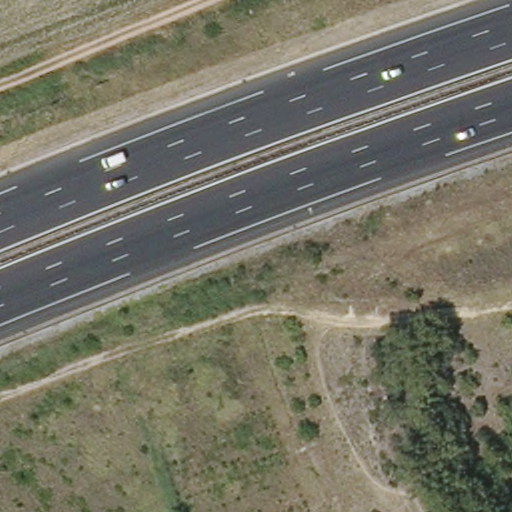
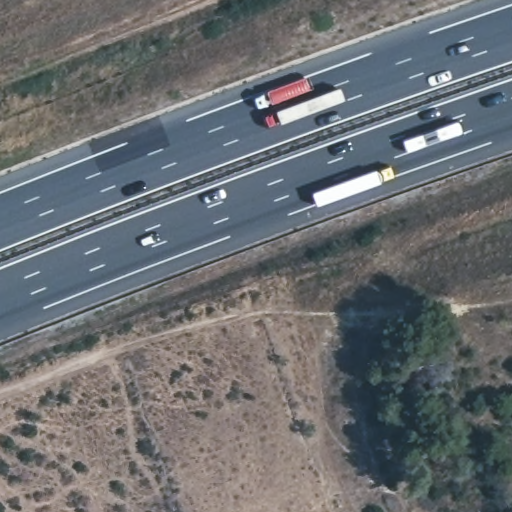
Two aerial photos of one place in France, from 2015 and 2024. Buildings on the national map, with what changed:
unchanged [(400,369),(401,384),(388,387),(386,372),(400,369)]

